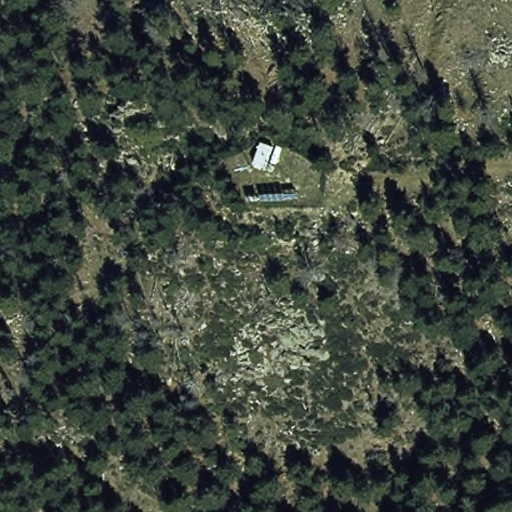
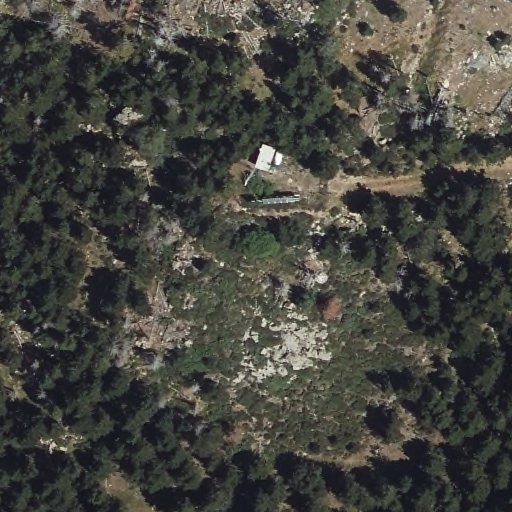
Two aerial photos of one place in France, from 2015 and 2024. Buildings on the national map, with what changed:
unchanged [(261,142),(277,147),(267,171),(252,166),(261,142)]

